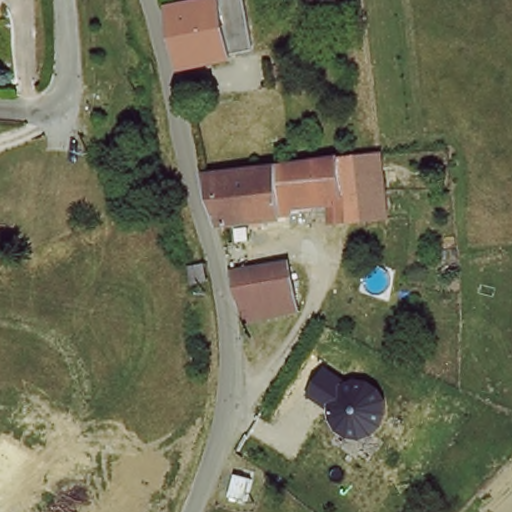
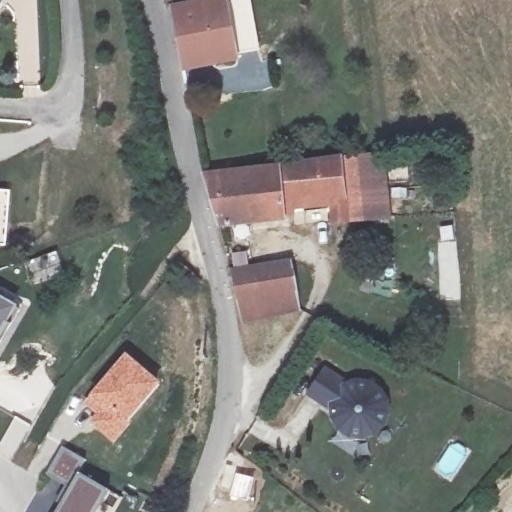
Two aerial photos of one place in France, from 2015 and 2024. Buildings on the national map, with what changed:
unchanged [(0,9),(0,0),(4,0),(0,9)]
unchanged [(187,11),(238,0),(240,0),(250,51),(198,62),(187,11)]
unchanged [(213,169),(370,151),(377,204),(333,208),(330,191),(276,197),(278,216),(226,222),(213,169)]
unchanged [(5,246),(0,245),(0,191),(11,192),(5,246)]
unchanged [(244,319),(236,275),(296,262),(298,311),(244,319)]
demolished [(197,298),(192,275),(208,271),(214,295),(197,298)]
new [(20,310),(11,324),(0,342),(0,297),(17,307),(20,310)]
new [(97,415),(84,402),(92,393),(126,352),(162,384),(129,421),(132,423),(115,443),(91,422),(97,415)]
unchanged [(325,371),(345,382),(353,378),(362,378),(374,380),(385,388),(391,401),(391,417),(385,427),(375,436),(364,439),(351,437),(338,431),(332,420),(330,407),(310,396),(325,371)]
new [(81,473),(111,490),(97,512),(57,512),(71,487),(49,474),(65,447),(88,461),(81,473)]
demolished [(261,492),(254,503),(236,491),(244,478),(261,492)]

